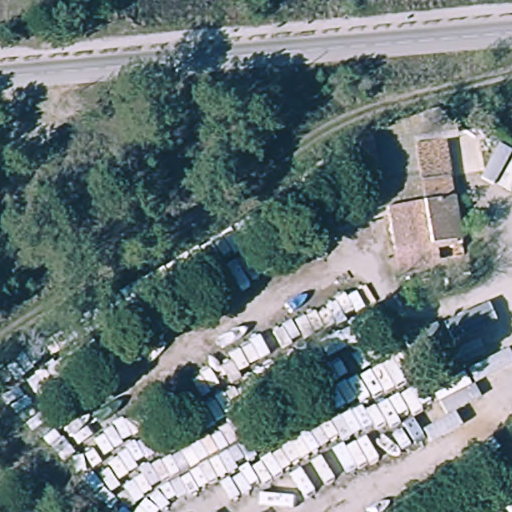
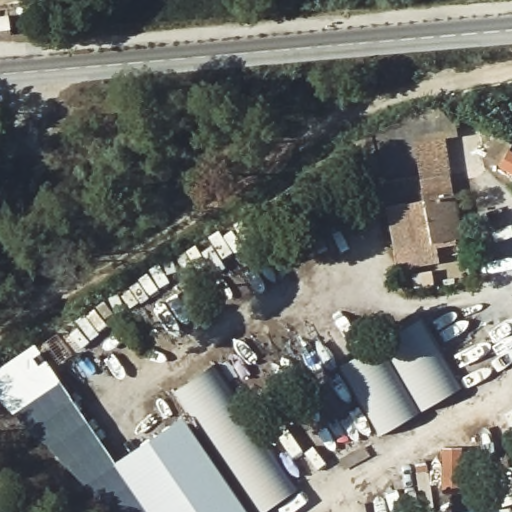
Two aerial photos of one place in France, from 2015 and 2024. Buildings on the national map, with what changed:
unchanged [(436,247),(437,266),(390,268),(381,144),(445,139),(462,243),(436,247)]
new [(417,322),(459,391),(424,411),(385,341),(417,322)]
new [(115,463),(113,464),(146,512),(112,512),(88,482),(84,484),(0,399),(0,366),(34,343),(115,463)]
new [(377,345),(417,415),(382,434),(342,366),(377,345)]
new [(295,490),(264,512),(255,512),(174,391),(211,367),(295,490)]
new [(183,418),(247,512),(146,512),(113,464),(183,418)]

